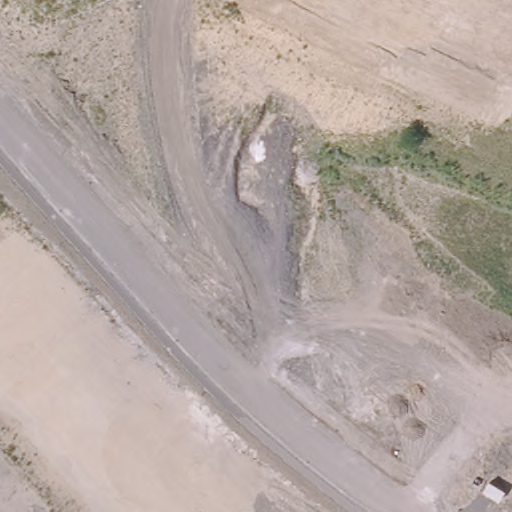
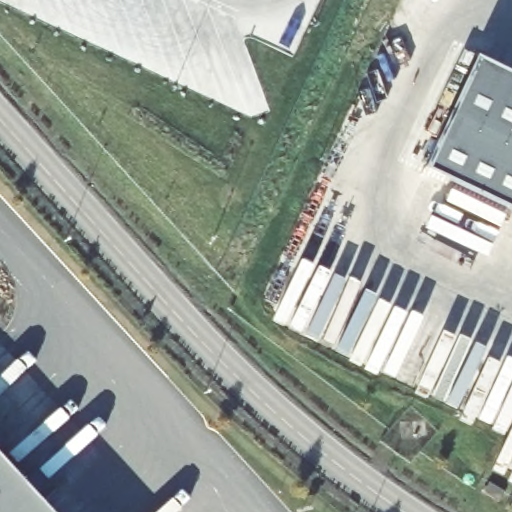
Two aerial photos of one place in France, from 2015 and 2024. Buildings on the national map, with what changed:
new [(512,81),(512,210),(427,169),(475,64),(512,81)]
new [(0,460),(47,512),(0,512),(0,460)]

